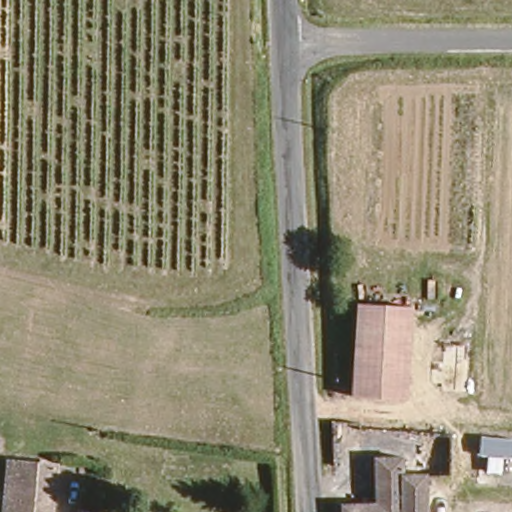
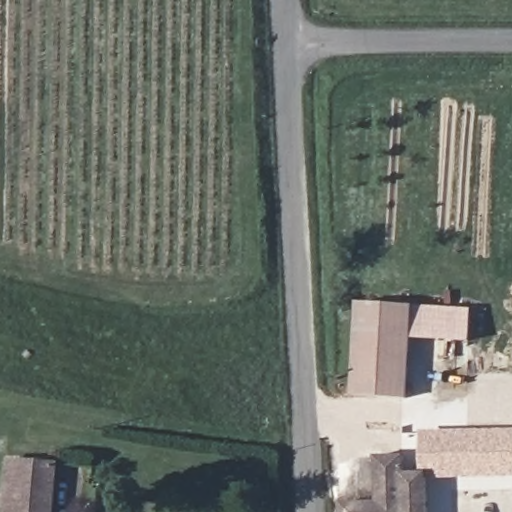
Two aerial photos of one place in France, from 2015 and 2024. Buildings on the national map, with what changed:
unchanged [(410,309),(409,400),(355,400),(356,309),(410,309)]
new [(410,309),(470,309),(471,341),(409,339),(410,309)]
new [(512,477),(422,479),(422,476),(422,471),(420,471),(419,430),(512,429),(512,477)]
unchanged [(336,512),(336,499),(374,500),(375,454),(401,454),(401,470),(422,471),(422,476),(421,512),(336,512)]
unchanged [(50,512),(3,512),(6,465),(54,470),(50,512)]

